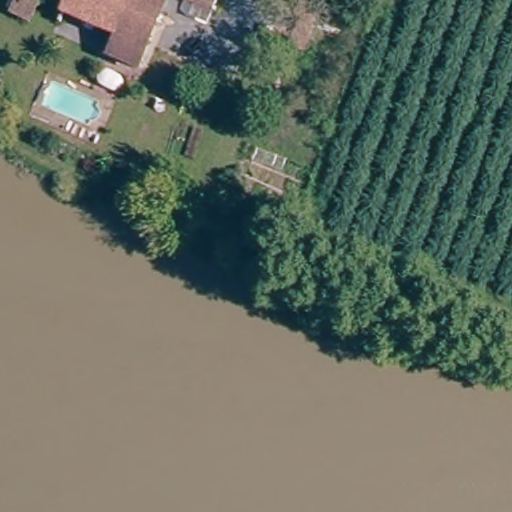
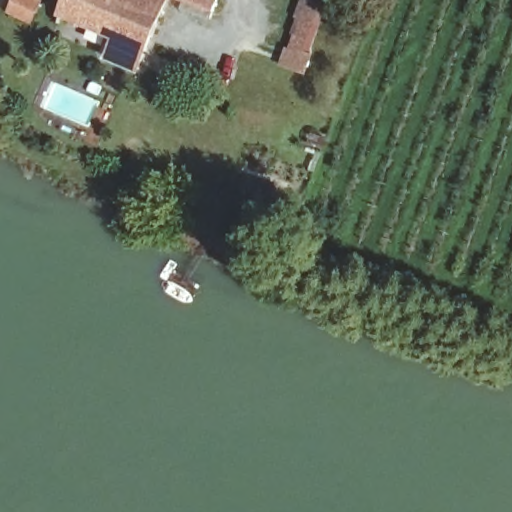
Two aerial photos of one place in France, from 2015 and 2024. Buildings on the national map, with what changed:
unchanged [(9,13),(14,0),(33,0),(41,3),(33,22),(9,13)]
unchanged [(58,39),(74,0),(175,0),(142,75),(58,39)]
unchanged [(180,0),(224,0),(217,16),(180,0)]
new [(314,0),(325,4),(300,74),(278,66),(302,0),(314,0)]

